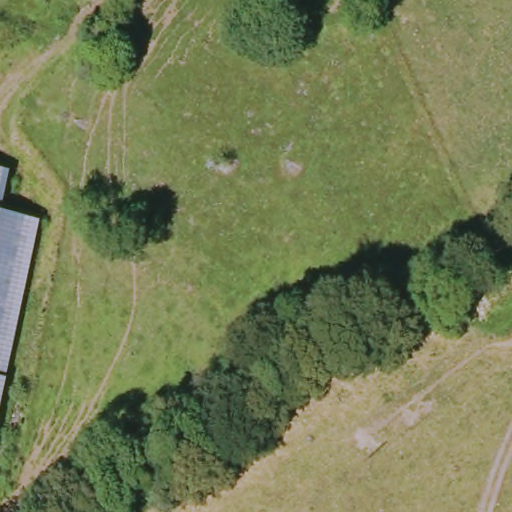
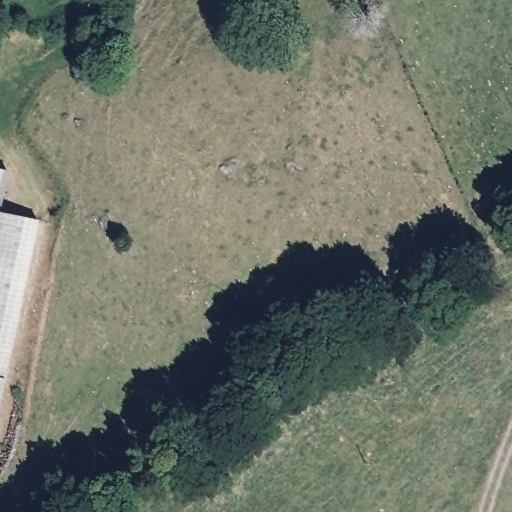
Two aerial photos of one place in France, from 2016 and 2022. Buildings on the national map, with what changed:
unchanged [(0,214),(0,173),(6,174),(0,214)]
unchanged [(0,410),(0,214),(40,222),(0,410)]

